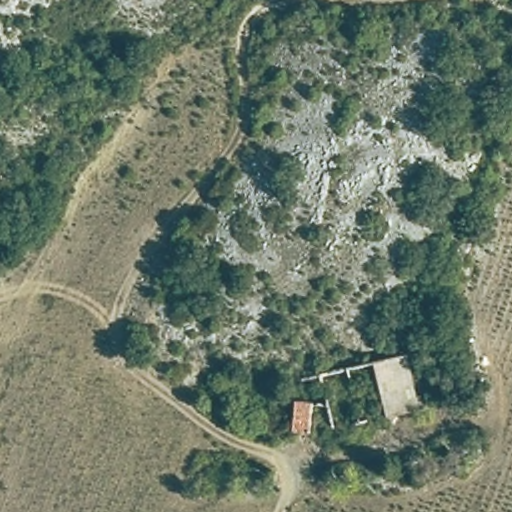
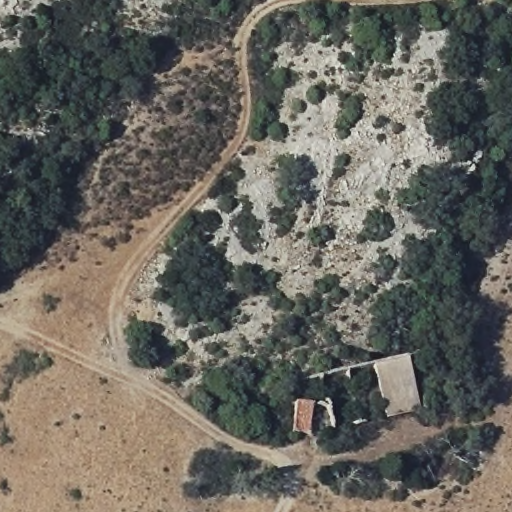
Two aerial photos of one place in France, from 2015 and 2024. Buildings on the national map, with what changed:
unchanged [(372,361),(404,352),(412,411),(386,421),(372,361)]
unchanged [(288,434),(291,400),(311,404),(305,435),(288,434)]

